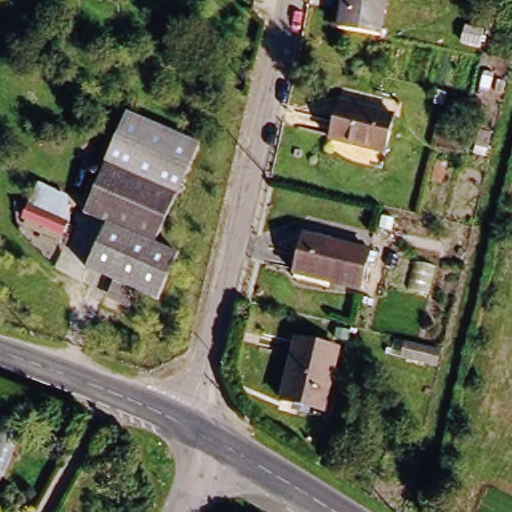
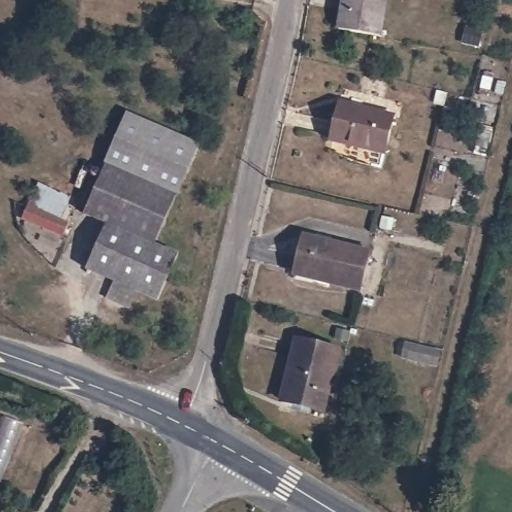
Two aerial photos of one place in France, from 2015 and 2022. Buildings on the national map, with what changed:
unchanged [(336,34),(341,0),(383,0),(376,41),(336,34)]
unchanged [(382,154),(332,139),(338,106),(391,119),(382,154)]
unchanged [(122,115),(196,141),(158,245),(183,255),(165,299),(94,274),(110,228),(85,219),(122,115)]
unchanged [(75,222),(66,237),(25,227),(25,209),(35,183),(66,194),(75,222)]
unchanged [(368,254),(360,292),(295,273),(303,238),(368,254)]
unchanged [(295,342),(340,352),(326,408),(282,396),(295,342)]

